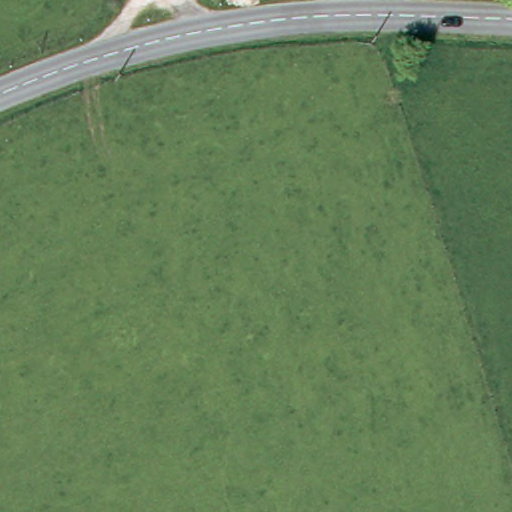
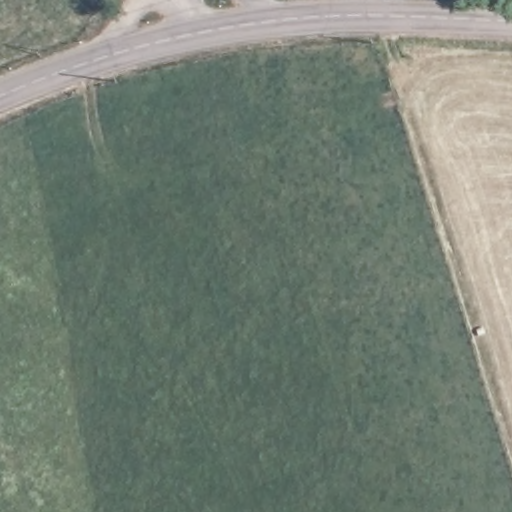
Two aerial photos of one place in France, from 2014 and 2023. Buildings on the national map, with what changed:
[]

